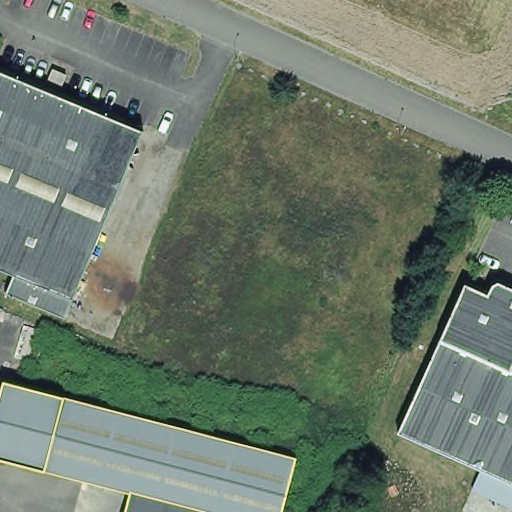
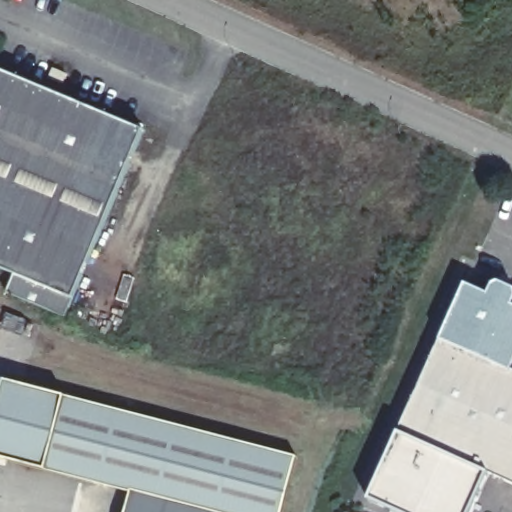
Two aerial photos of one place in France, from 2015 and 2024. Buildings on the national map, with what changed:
unchanged [(63,313),(2,288),(8,272),(0,269),(0,68),(140,126),(63,313)]
unchanged [(485,289),(488,284),(497,281),(512,287),(512,302),(512,363),(511,364),(512,365),(512,483),(482,471),(397,430),(464,281),(485,289)]
unchanged [(283,512),(126,512),(131,494),(0,460),(0,402),(5,382),(296,460),(283,512)]
new [(466,512),(395,512),(364,500),(397,430),(482,471),(466,512)]

